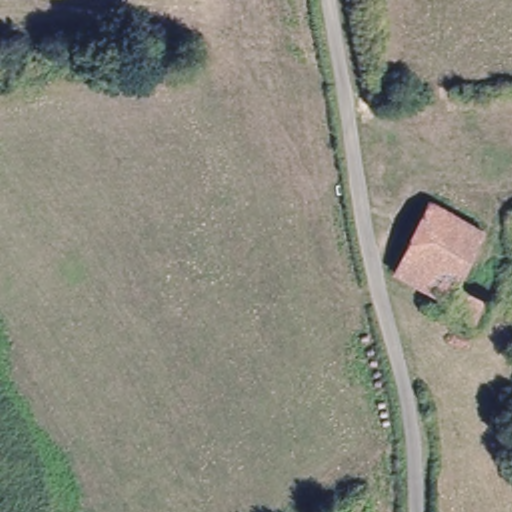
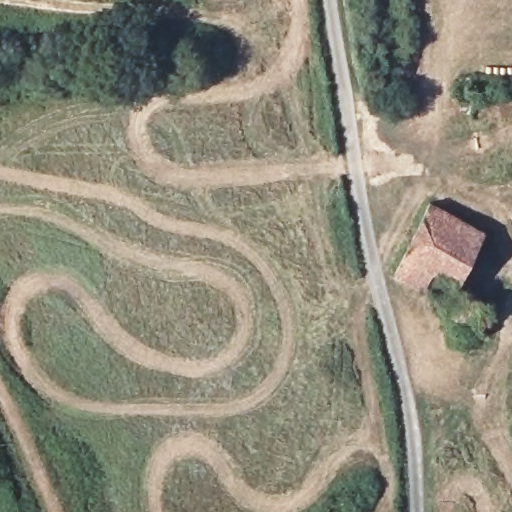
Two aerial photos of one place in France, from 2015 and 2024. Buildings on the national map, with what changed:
unchanged [(403,258),(433,196),(488,221),(460,275),(501,298),(498,307),(492,319),(448,297),(454,289),(444,284),(403,258)]

